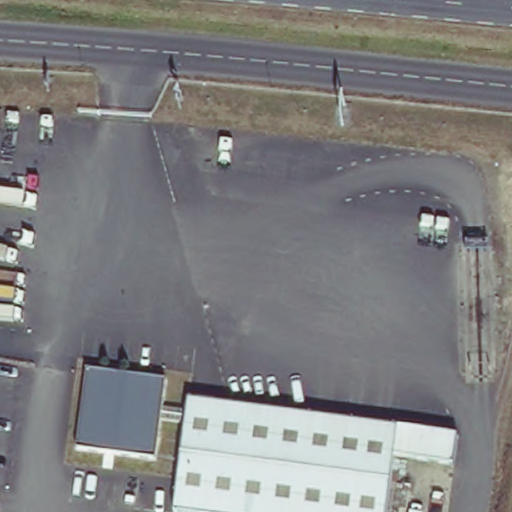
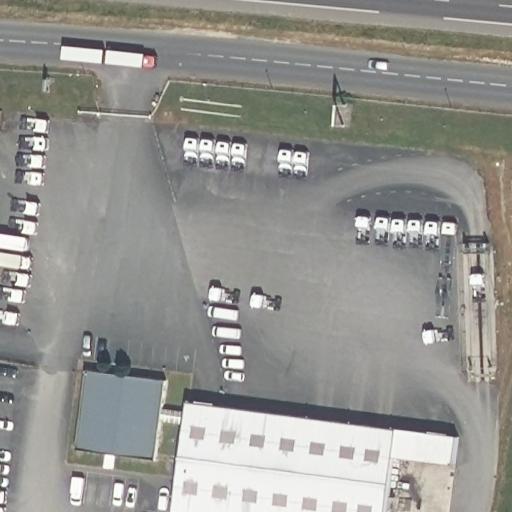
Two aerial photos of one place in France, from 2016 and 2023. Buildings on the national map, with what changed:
unchanged [(171,377),(160,459),(79,448),(90,367),(171,377)]
unchanged [(458,440),(454,468),(397,460),(389,512),(170,512),(187,401),(458,440)]

